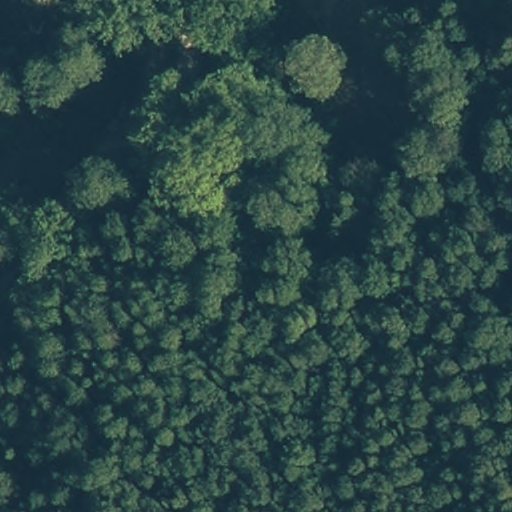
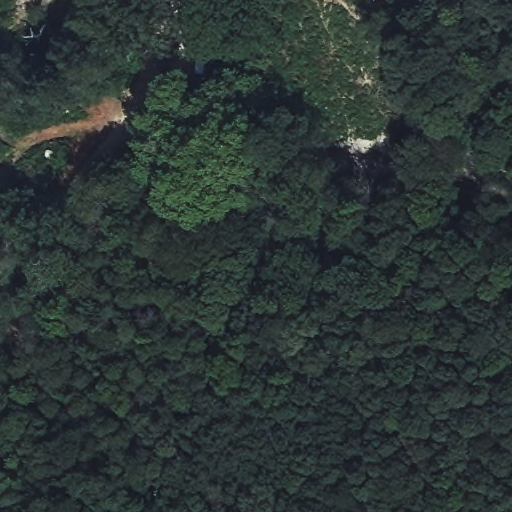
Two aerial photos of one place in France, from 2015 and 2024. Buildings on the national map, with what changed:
[]

